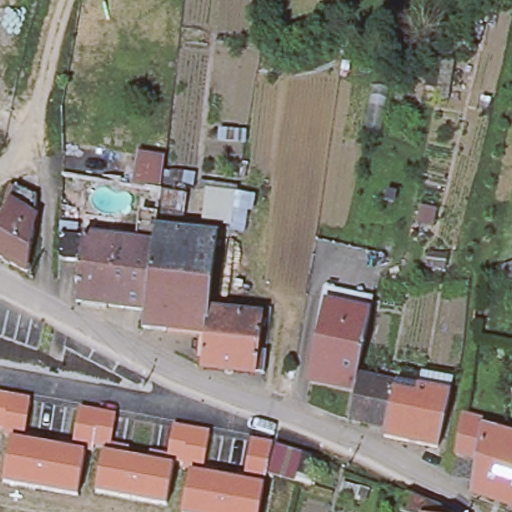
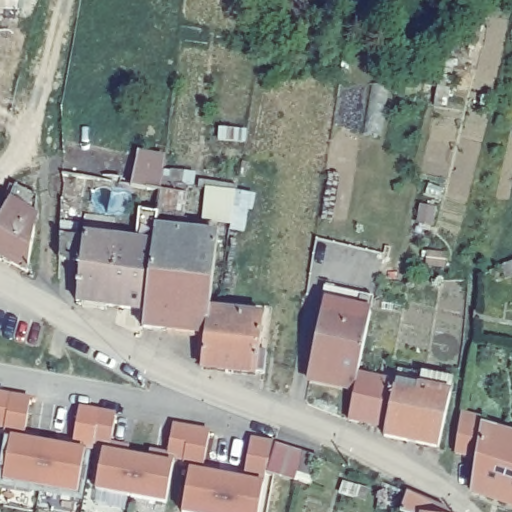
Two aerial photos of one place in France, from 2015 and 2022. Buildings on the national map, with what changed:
unchanged [(211,307),(208,307),(206,331),(145,324),(148,306),(77,298),(81,258),(60,255),(59,250),(56,249),(56,240),(59,240),(59,231),(84,235),(84,233),(138,240),(141,210),(144,181),(139,181),(142,150),(166,152),(163,187),(177,189),(178,182),(187,183),(186,191),(181,228),(218,232),(211,307)]
unchanged [(203,189),(249,196),(244,234),(229,232),(231,226),(201,223),(203,189)]
unchanged [(0,256),(0,218),(13,194),(36,213),(26,270),(0,256)]
unchanged [(512,273),(503,274),(499,266),(512,262),(512,273)]
unchanged [(351,391),(306,382),(315,341),(309,340),(321,288),(371,298),(368,312),(354,376),(351,391)]
unchanged [(258,369),(203,363),(206,331),(208,307),(211,307),(221,308),(264,313),(260,347),(268,348),(265,370),(258,369)]
unchanged [(417,374),(449,380),(446,395),(434,448),(381,437),(383,429),(393,384),(394,384),(414,388),(417,374)]
unchanged [(393,384),(383,429),(344,421),(351,391),(355,376),(393,384)]
unchanged [(30,398),(24,437),(73,444),(79,408),(116,414),(110,447),(168,457),(173,426),(209,432),(203,468),(245,475),(251,438),(271,441),(258,512),(181,512),(190,468),(174,464),(166,503),(95,489),(103,452),(84,450),(76,492),(3,479),(11,436),(0,433),(0,394),(30,398)]
unchanged [(467,422),(468,414),(489,418),(488,428),(512,435),(512,505),(478,492),(483,460),(461,454),(467,422)]
unchanged [(268,475),(275,448),(302,454),(296,481),(268,475)]
unchanged [(311,485),(296,482),(303,455),(319,459),(311,485)]

